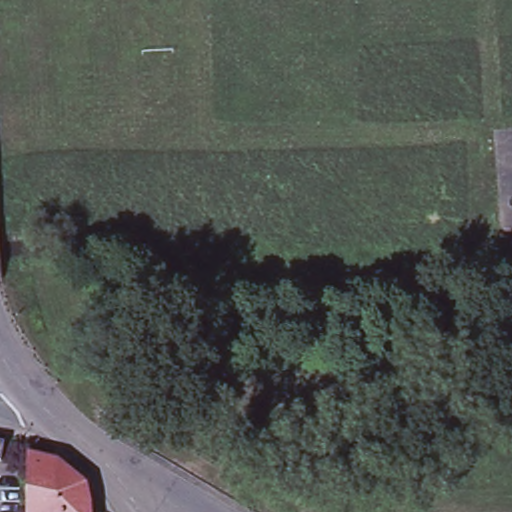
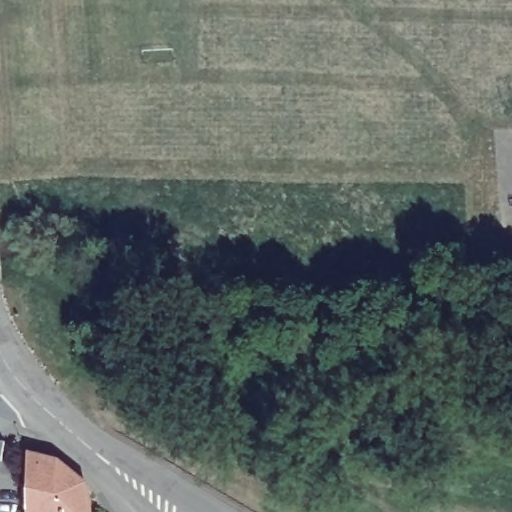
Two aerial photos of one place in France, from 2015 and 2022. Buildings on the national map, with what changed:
unchanged [(85,483),(90,505),(91,512),(27,512),(27,453),(57,459),(69,469),(85,483)]

